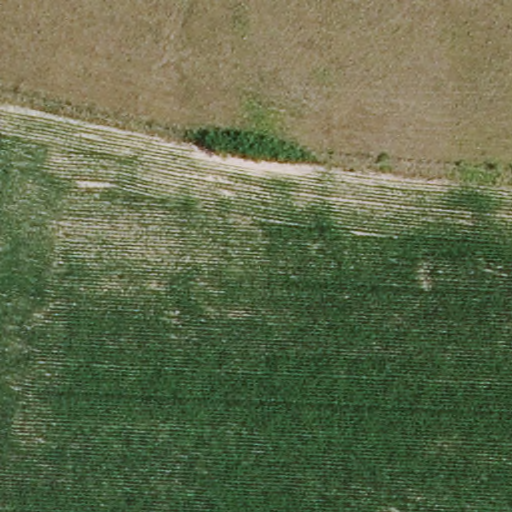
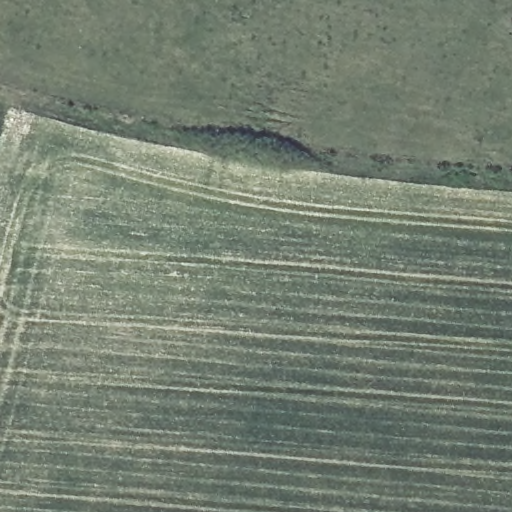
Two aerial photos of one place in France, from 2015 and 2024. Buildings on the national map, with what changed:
[]

